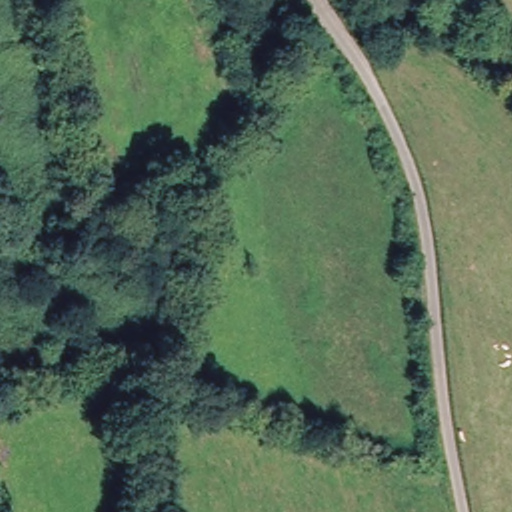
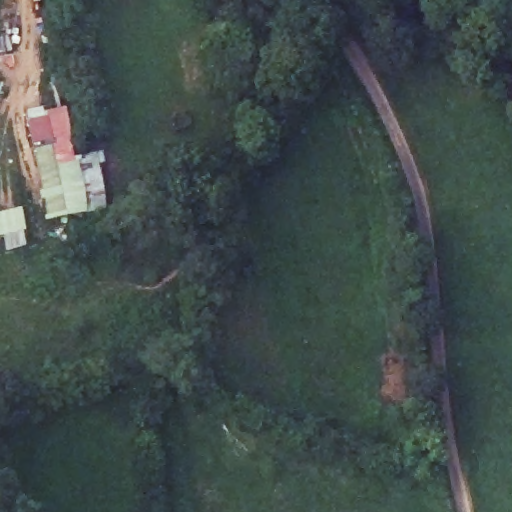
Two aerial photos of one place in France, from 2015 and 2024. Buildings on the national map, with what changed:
new [(25,110),(42,106),(44,113),(65,108),(74,156),(96,152),(106,209),(85,213),(46,219),(25,110)]

